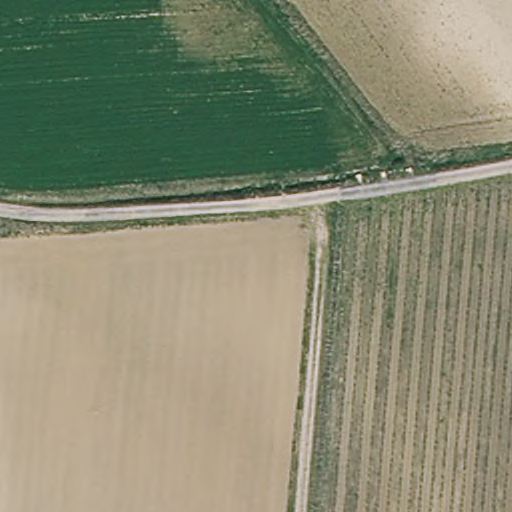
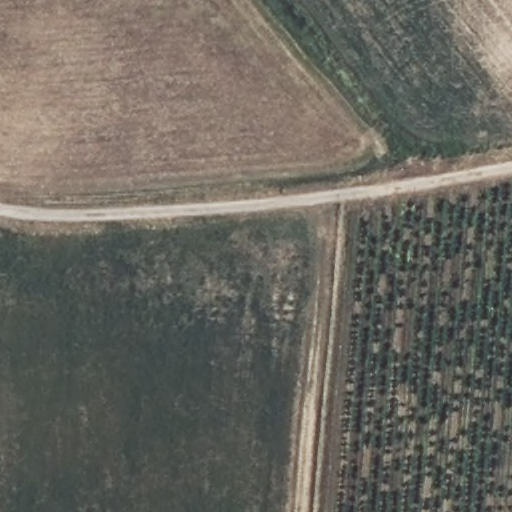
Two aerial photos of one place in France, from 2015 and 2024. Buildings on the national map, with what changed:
[]

